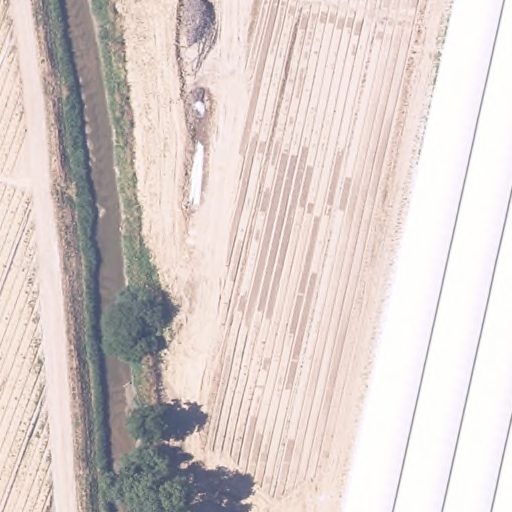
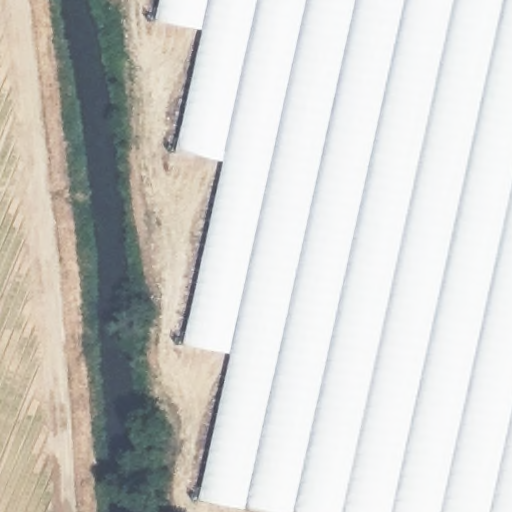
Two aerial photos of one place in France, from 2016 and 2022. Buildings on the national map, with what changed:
new [(344,512),(255,512),(200,501),(231,355),(182,344),(223,163),(175,152),(201,32),(155,21),(159,0),(455,0),(344,512)]
unchanged [(344,512),(455,0),(512,0),(512,512),(344,512)]

